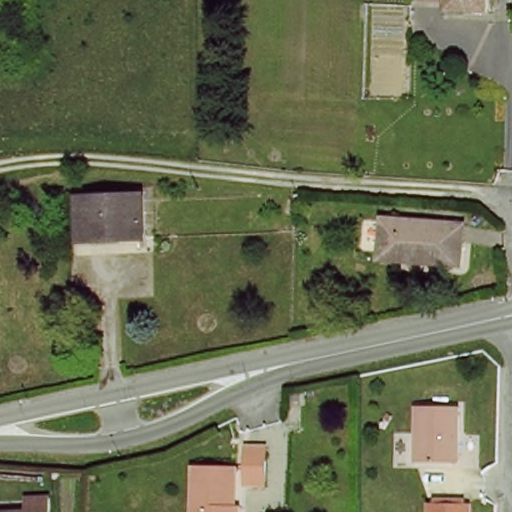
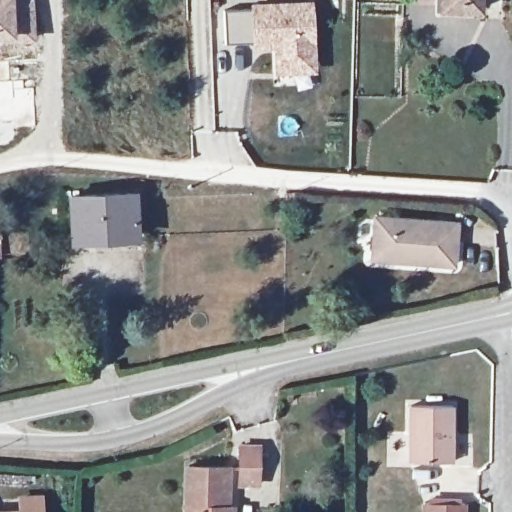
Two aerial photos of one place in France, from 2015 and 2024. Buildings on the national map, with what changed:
new [(33,44),(0,43),(0,0),(33,0),(33,44)]
unchanged [(440,0),(482,0),(482,15),(440,13),(440,0)]
new [(323,5),(321,81),(273,81),(273,52),(250,52),(249,5),(323,5)]
unchanged [(68,241),(68,196),(138,194),(140,240),(68,241)]
unchanged [(457,263),(371,259),(375,217),(459,220),(457,263)]
unchanged [(409,462),(410,405),(453,406),(450,463),(409,462)]
unchanged [(262,445),(264,484),(242,485),(240,443),(262,445)]
unchanged [(231,506),(236,507),(236,512),(190,512),(189,466),(230,467),(231,506)]
unchanged [(470,503),(470,512),(429,512),(430,501),(470,503)]
unchanged [(41,512),(0,512),(0,511),(41,511),(41,512)]

